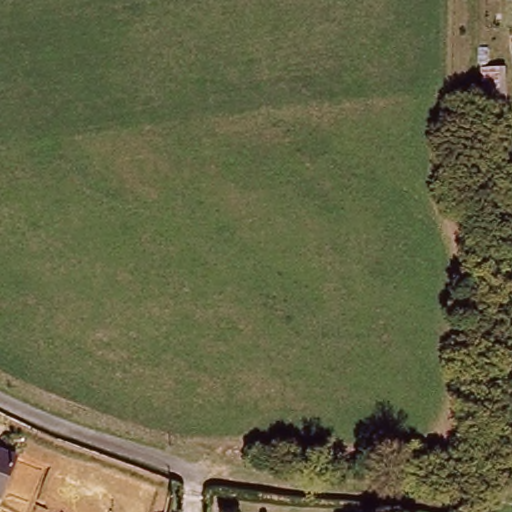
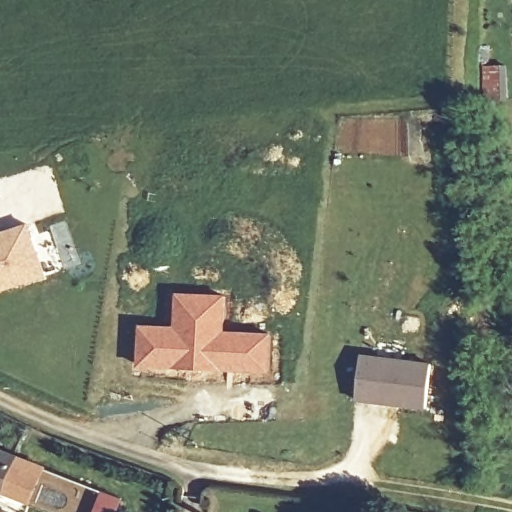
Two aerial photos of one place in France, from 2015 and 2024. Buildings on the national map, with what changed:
unchanged [(504,102),(482,101),(482,63),(505,61),(504,102)]
new [(47,276),(0,292),(0,233),(30,222),(47,276)]
new [(137,323),(172,324),(174,292),(227,292),(226,330),(272,332),(270,375),(182,370),(135,369),(137,323)]
new [(427,410),(355,401),(362,353),(433,362),(427,410)]
unchanged [(14,455),(0,491),(0,450),(14,455)]
new [(32,504),(27,512),(14,512),(0,508),(0,491),(14,455),(47,467),(32,504)]

